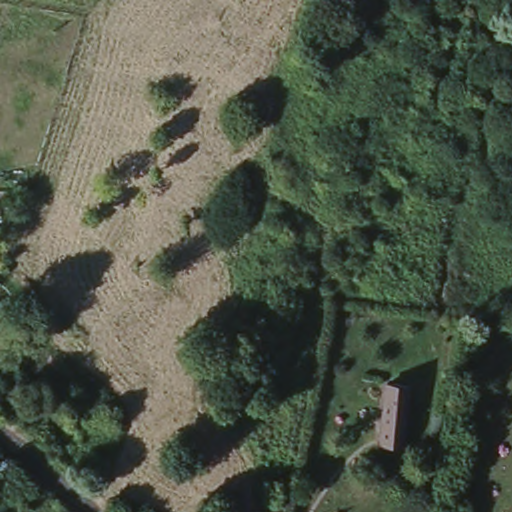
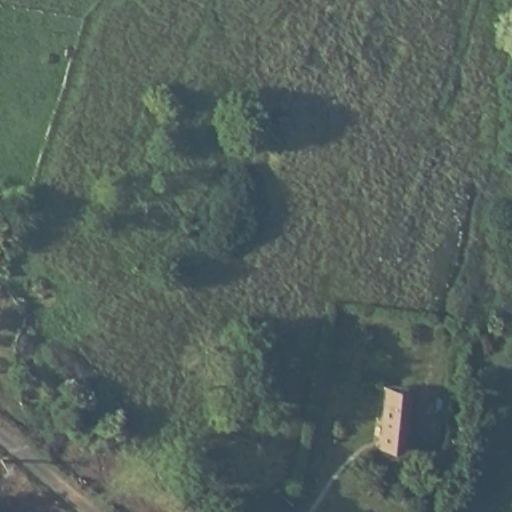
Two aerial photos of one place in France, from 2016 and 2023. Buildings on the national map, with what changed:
unchanged [(375,444),(380,396),(381,382),(412,384),(410,399),(406,445),(375,444)]

